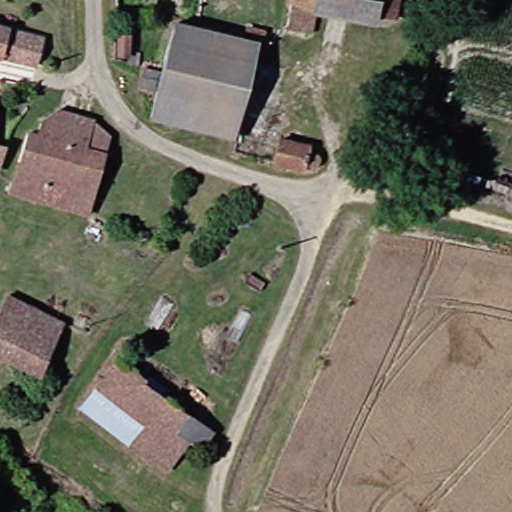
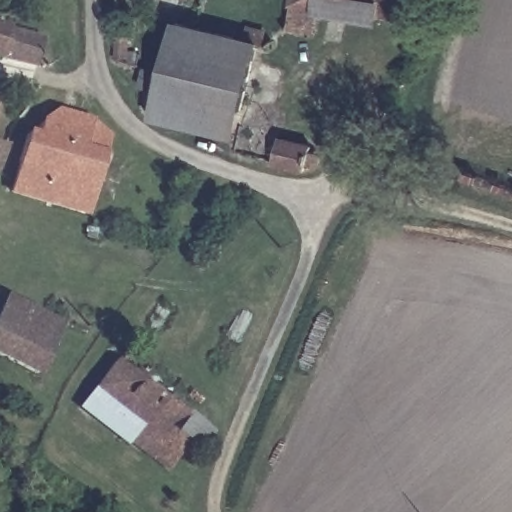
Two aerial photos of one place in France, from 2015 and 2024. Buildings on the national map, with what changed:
unchanged [(306,31),(282,27),(285,0),(311,0),(308,16),(306,31)]
unchanged [(366,24),(308,16),(311,0),(379,0),(391,1),(389,16),(367,14),(366,24)]
unchanged [(379,0),(391,0),(391,1),(379,0)]
unchanged [(132,64),(151,68),(166,21),(231,36),(234,26),(254,30),(250,46),(246,45),(227,112),(144,91),(145,87),(128,84),(132,64)]
unchanged [(26,40),(18,62),(0,58),(0,31),(26,40)]
unchanged [(227,112),(220,136),(142,115),(144,91),(227,112)]
unchanged [(24,131),(51,108),(87,118),(88,120),(80,148),(24,131)]
unchanged [(77,216),(64,212),(4,192),(22,132),(24,131),(80,148),(83,149),(97,154),(77,216)]
unchanged [(270,156),(276,133),(305,139),(305,143),(313,147),(315,150),(316,153),(315,157),(312,159),(309,160),(301,158),(298,165),(270,156)]
unchanged [(53,325),(26,377),(0,363),(0,297),(53,325)]
unchanged [(162,426),(154,439),(84,393),(105,361),(202,426),(189,445),(176,435),(162,426)]
unchanged [(156,466),(73,410),(84,393),(154,439),(162,426),(176,435),(156,466)]

